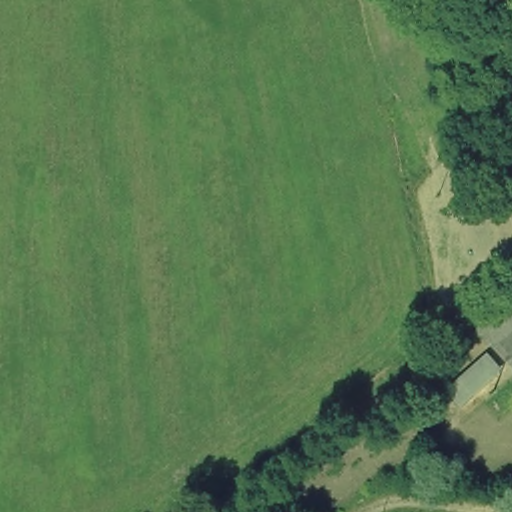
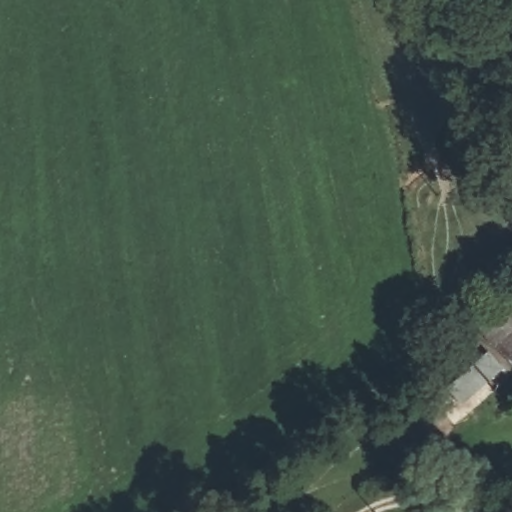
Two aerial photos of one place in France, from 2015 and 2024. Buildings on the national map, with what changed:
unchanged [(475,320),(512,285),(512,363),(475,320)]
unchanged [(465,365),(490,344),(512,370),(483,393),(465,365)]

